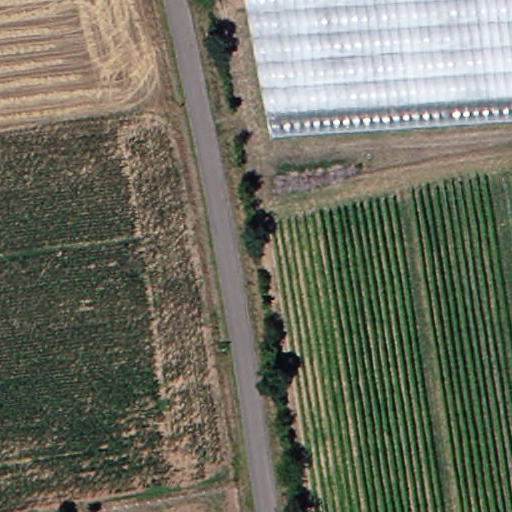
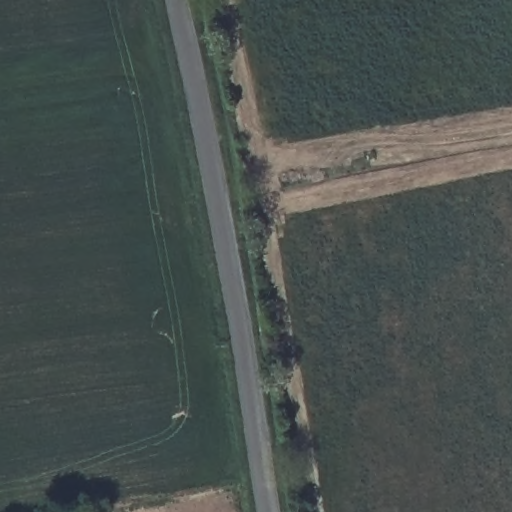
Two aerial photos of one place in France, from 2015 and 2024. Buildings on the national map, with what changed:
demolished [(512,119),(272,135),(247,0),(512,0),(512,119)]

